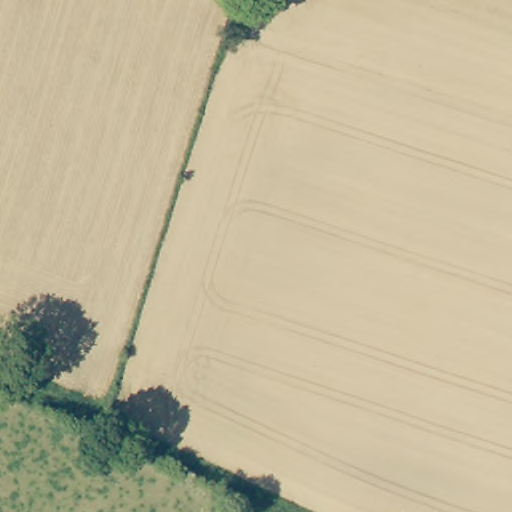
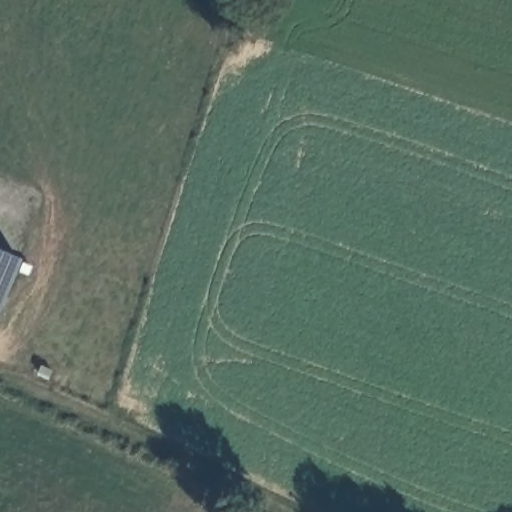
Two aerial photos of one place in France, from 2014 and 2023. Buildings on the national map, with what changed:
new [(0,305),(0,248),(21,256),(0,305)]

